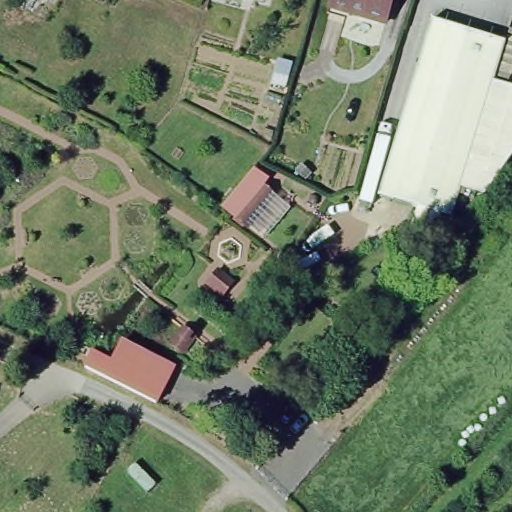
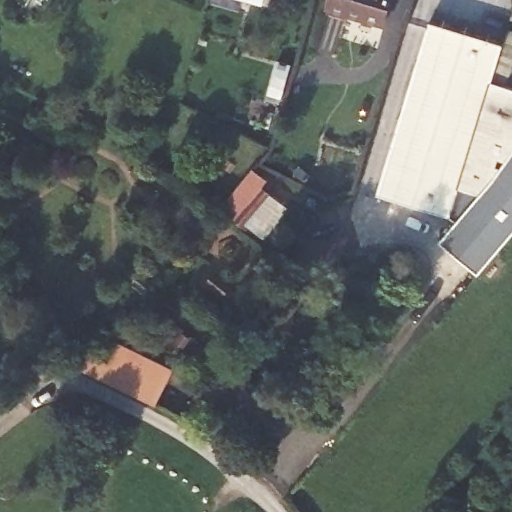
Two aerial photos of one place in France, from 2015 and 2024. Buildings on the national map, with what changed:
unchanged [(379,19),(322,2),(323,0),(384,0),(379,19)]
unchanged [(459,182),(450,212),(440,209),(417,201),(377,189),(430,15),(504,37),(497,59),(492,75),(512,82),(512,149),(482,190),(459,182)]
unchanged [(495,73),(510,25),(512,26),(512,59),(507,77),(495,73)]
unchanged [(285,87),(271,83),(277,60),(292,63),(285,87)]
new [(442,239),(459,220),(450,212),(459,182),(482,190),(512,149),(512,233),(479,272),(442,239)]
unchanged [(246,227),(222,207),(254,167),(262,174),(267,179),(261,185),(273,196),(246,227)]
unchanged [(222,296),(206,283),(216,271),(232,283),(222,296)]
unchanged [(182,353),(170,344),(182,328),(194,337),(182,353)]
unchanged [(84,366),(92,351),(112,360),(122,340),(174,364),(157,402),(84,366)]

